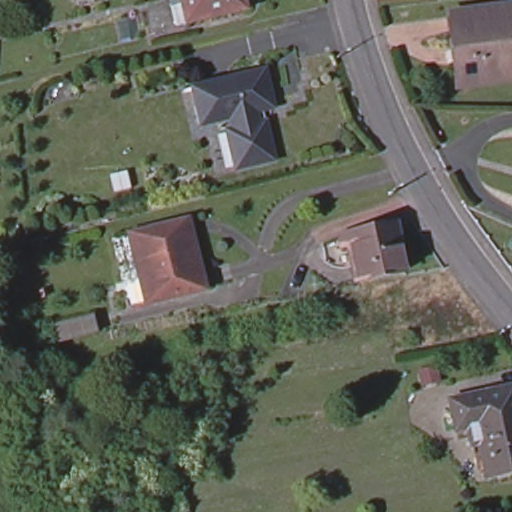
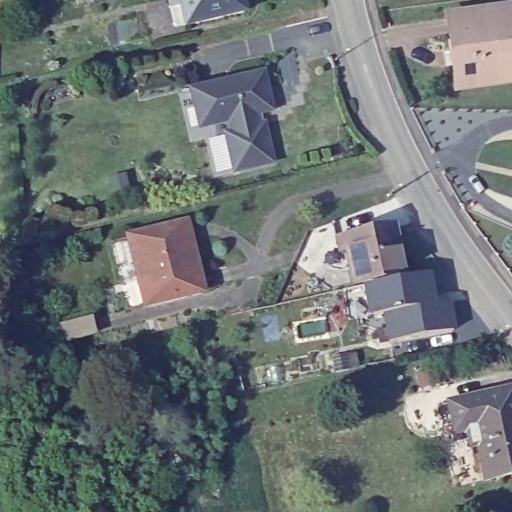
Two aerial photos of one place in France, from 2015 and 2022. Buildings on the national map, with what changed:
unchanged [(176,0),(250,0),(252,10),(192,24),(191,18),(181,20),(176,1),(176,0)]
unchanged [(512,5),(512,54),(495,56),(456,61),(449,14),(512,5)]
unchanged [(512,54),(512,78),(498,79),(495,56),(512,54)]
unchanged [(456,85),(452,62),(456,61),(495,56),(498,79),(456,85)]
unchanged [(263,107),(248,110),(251,121),(257,120),(266,161),(226,170),(217,131),(223,130),(220,119),(204,123),(191,125),(187,106),(182,86),(255,69),(263,107)]
unchanged [(182,221),(200,289),(145,303),(126,234),(182,221)]
unchanged [(336,244),(335,234),(390,224),(400,270),(351,280),(343,242),(336,244)]
new [(401,278),(430,274),(435,305),(451,303),(455,331),(387,343),(383,317),(366,319),(360,278),(400,270),(401,278)]
unchanged [(510,386),(512,395),(512,416),(465,425),(452,428),(446,399),(510,386)]
unchanged [(512,416),(512,470),(483,477),(476,441),(468,442),(465,425),(512,416)]

